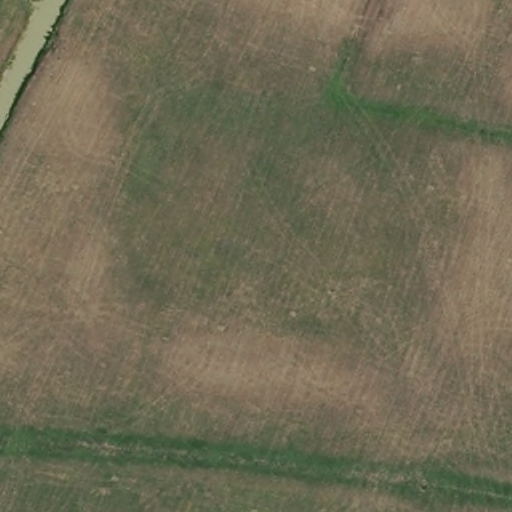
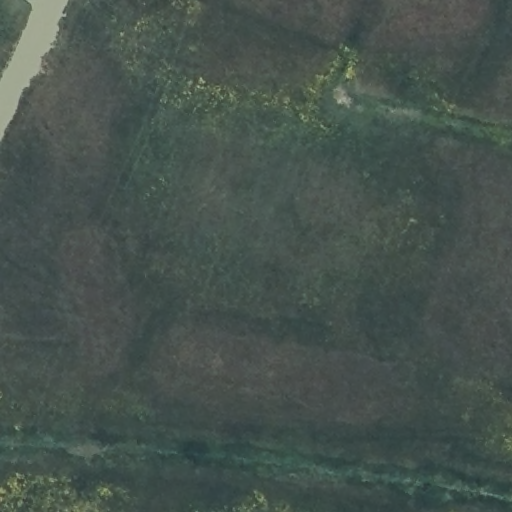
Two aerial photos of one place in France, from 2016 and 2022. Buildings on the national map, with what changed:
[]

